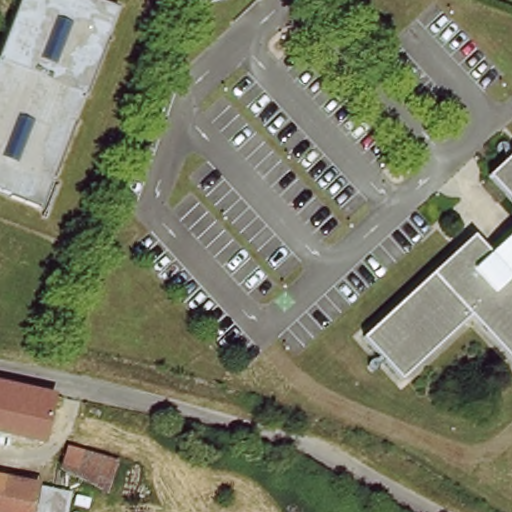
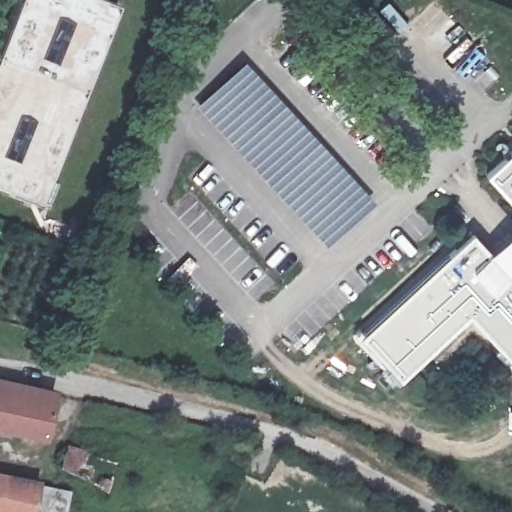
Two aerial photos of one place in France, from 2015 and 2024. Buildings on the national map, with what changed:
unchanged [(0,54),(23,0),(76,0),(115,16),(32,209),(0,195),(0,54)]
new [(196,108),(243,64),(374,205),(326,249),(196,108)]
unchanged [(490,174),(512,156),(512,201),(490,174)]
unchanged [(470,316),(398,374),(360,328),(457,249),(470,264),(512,229),(512,368),(470,316)]
unchanged [(41,441),(0,432),(0,383),(55,394),(41,441)]
unchanged [(61,469),(70,443),(115,458),(107,483),(61,469)]
unchanged [(0,475),(58,485),(53,512),(0,512),(0,475)]

